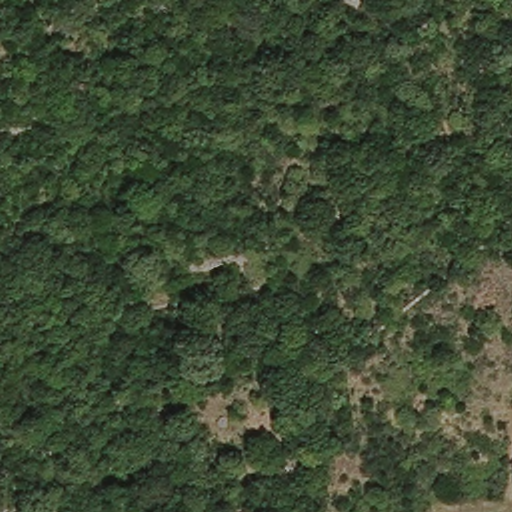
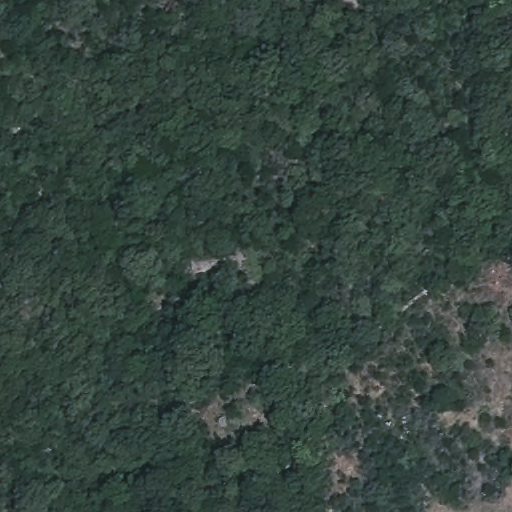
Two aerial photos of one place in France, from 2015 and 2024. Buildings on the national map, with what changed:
unchanged [(343,0),(358,0),(356,5),(343,0)]

